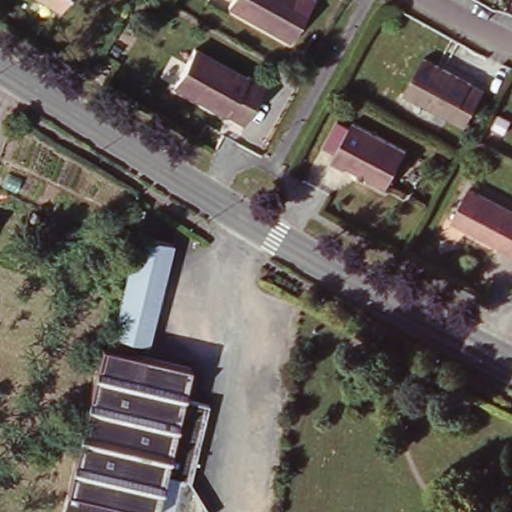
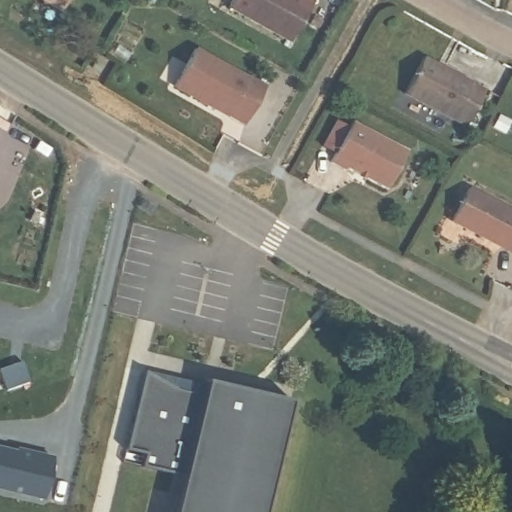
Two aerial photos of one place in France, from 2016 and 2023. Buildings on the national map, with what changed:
unchanged [(66,14),(45,0),(75,0),(66,14)]
unchanged [(235,0),(296,0),(297,0),(311,0),(316,3),(290,48),(229,10),(235,0)]
unchanged [(198,54),(247,82),(251,80),(271,93),(249,128),(179,86),(198,54)]
unchanged [(424,61),(487,97),(467,131),(406,95),(424,61)]
unchanged [(404,152),(384,189),(355,172),(351,172),(335,164),(356,124),(404,152)]
unchanged [(512,212),(512,261),(452,230),(472,191),(512,212)]
demolished [(178,251),(165,305),(156,348),(119,339),(134,270),(141,245),(178,251)]
demolished [(106,350),(190,370),(187,399),(210,405),(193,487),(210,512),(67,512),(99,384),(106,350)]
new [(166,512),(175,467),(121,456),(142,371),(196,385),(198,378),(284,399),(258,512),(166,512)]
new [(15,451),(52,460),(42,502),(0,492),(0,452),(14,455),(15,451)]

